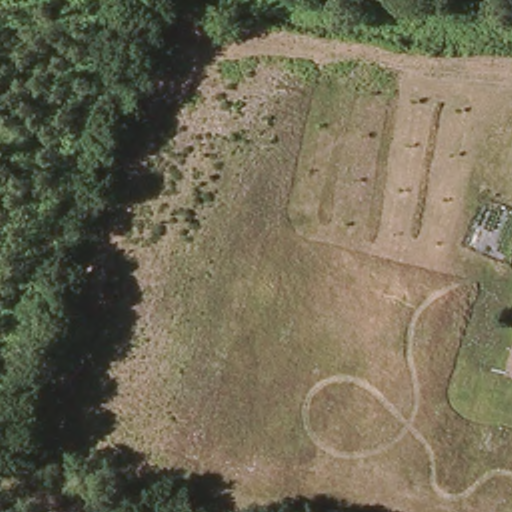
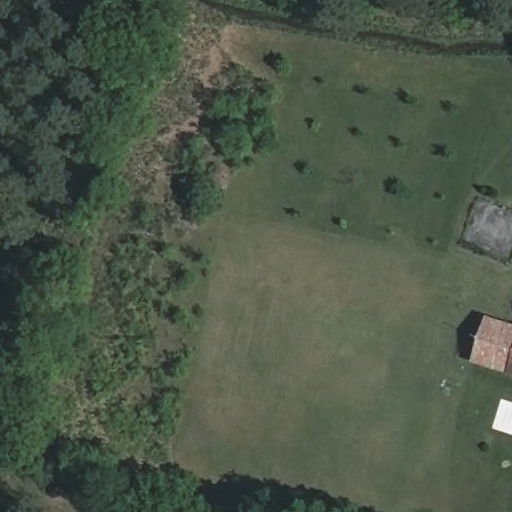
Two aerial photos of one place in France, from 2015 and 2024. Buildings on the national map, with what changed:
new [(471,365),(488,317),(512,324),(512,358),(507,380),(471,365)]
unchanged [(512,382),(507,380),(512,358),(512,382)]

